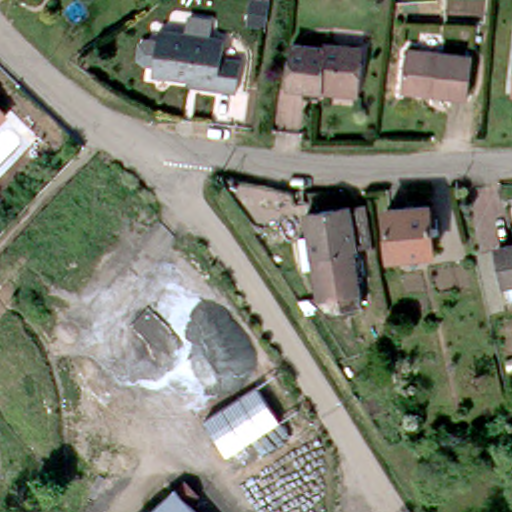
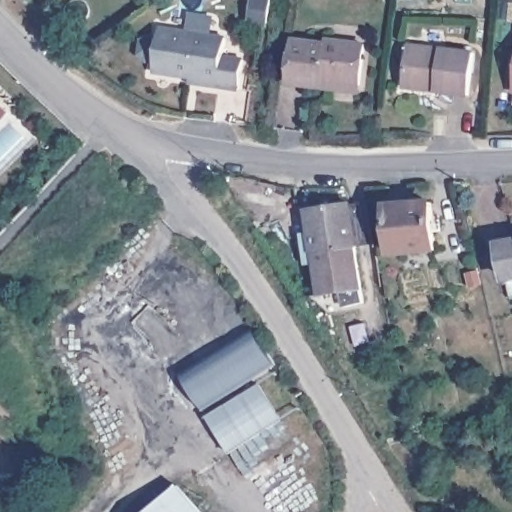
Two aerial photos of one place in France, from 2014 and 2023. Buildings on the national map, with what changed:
unchanged [(157,62),(164,23),(229,33),(226,52),(245,55),(241,85),(201,78),(201,73),(157,66),(157,62)]
unchanged [(322,80),(288,75),(294,37),(326,42),(327,38),(364,44),(359,78),(357,85),(322,80)]
unchanged [(403,87),(409,46),(472,55),(466,96),(435,91),(425,90),(403,87)]
unchanged [(0,92),(0,90),(1,90),(0,92)]
unchanged [(0,123),(0,102),(11,111),(0,123)]
unchanged [(356,202),(361,244),(359,245),(365,286),(367,300),(351,305),(347,289),(323,292),(320,271),(309,272),(302,230),(314,229),(311,208),(356,202)]
unchanged [(387,206),(428,202),(433,249),(392,253),(387,206)]
unchanged [(512,227),(512,284),(508,284),(499,229),(512,227)]
new [(254,327),(277,364),(204,410),(181,374),(254,327)]
unchanged [(203,512),(141,512),(175,481),(203,512)]

